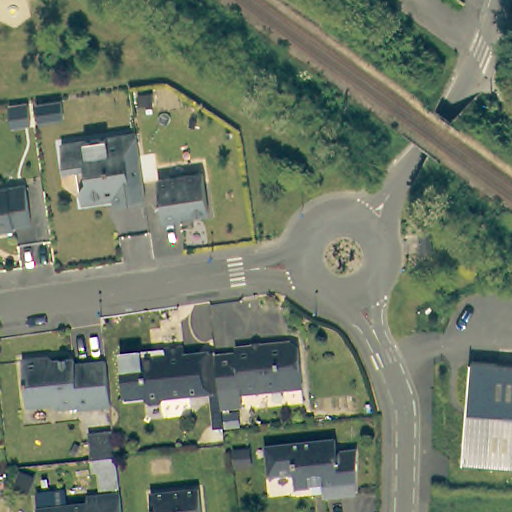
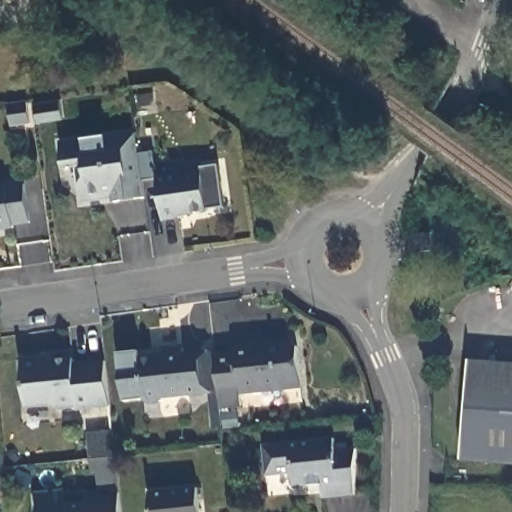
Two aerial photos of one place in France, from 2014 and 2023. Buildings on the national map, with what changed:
unchanged [(147,195),(116,201),(114,191),(107,191),(102,197),(84,200),(82,186),(89,177),(87,164),(67,167),(62,141),(120,133),(126,139),(139,137),(147,195)]
unchanged [(204,176),(208,215),(183,218),(184,222),(165,224),(159,182),(204,176)]
unchanged [(25,187),(32,224),(14,227),(15,232),(0,234),(0,191),(25,187)]
unchanged [(425,234),(427,252),(417,255),(414,236),(425,234)]
unchanged [(235,355),(235,350),(292,343),(297,348),(302,388),(240,395),(242,407),(220,410),(219,392),(215,357),(235,355)]
unchanged [(215,357),(219,392),(165,398),(161,403),(149,405),(144,400),(140,361),(165,359),(164,350),(182,348),(184,357),(215,353),(215,357)]
unchanged [(77,411),(77,408),(56,411),(52,407),(27,410),(22,362),(39,360),(44,363),(73,361),(74,366),(104,362),(109,408),(77,411)]
unchanged [(512,462),(466,458),(472,360),(512,363),(512,462)]
unchanged [(114,458),(89,461),(87,441),(112,438),(114,458)]
unchanged [(332,440),(334,453),(354,452),(353,496),(321,499),(320,488),(293,491),(292,476),(267,477),(264,447),(332,440)]
unchanged [(197,488),(199,512),(151,512),(149,493),(197,488)]
unchanged [(36,511),(85,505),(85,498),(117,494),(119,512),(36,512),(36,511)]

